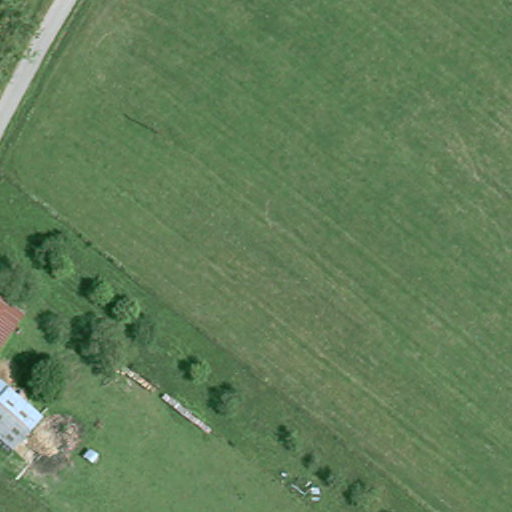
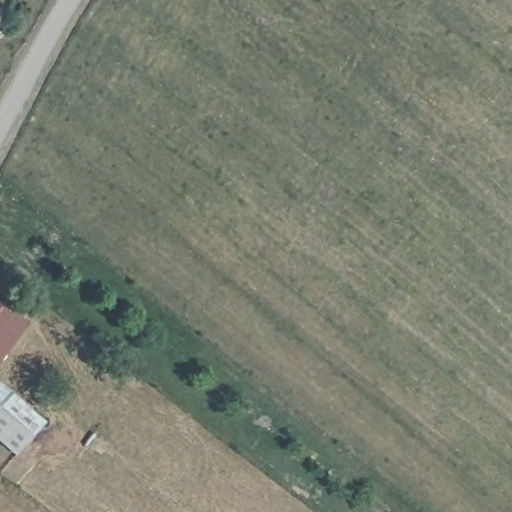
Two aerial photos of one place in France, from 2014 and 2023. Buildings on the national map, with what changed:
unchanged [(0,368),(0,296),(32,320),(0,368)]
unchanged [(19,458),(0,442),(0,382),(52,424),(19,458)]

